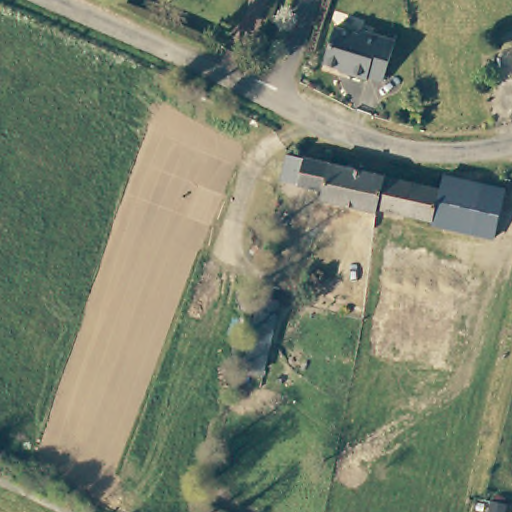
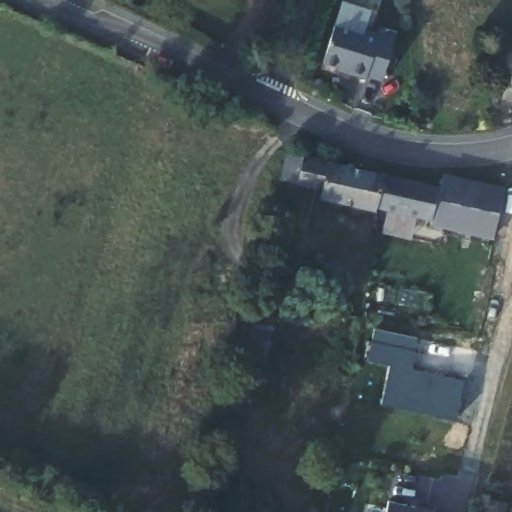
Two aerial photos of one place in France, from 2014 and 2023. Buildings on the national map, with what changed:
unchanged [(357,34),(359,29),(388,36),(376,79),(363,74),(361,79),(343,74),(344,68),(323,62),(333,26),(357,34)]
unchanged [(512,41),(512,49),(510,41),(512,41)]
unchanged [(373,210),(321,195),(321,187),(296,181),(299,156),(377,174),(373,205),(373,210)]
unchanged [(377,174),(439,186),(441,175),(457,176),(503,187),(493,236),(428,221),(429,215),(373,205),(377,174)]
new [(389,366),(368,362),(371,341),(416,350),(413,368),(464,380),(455,420),(381,404),(389,366)]
new [(385,512),(387,500),(435,510),(439,512),(385,512)]

